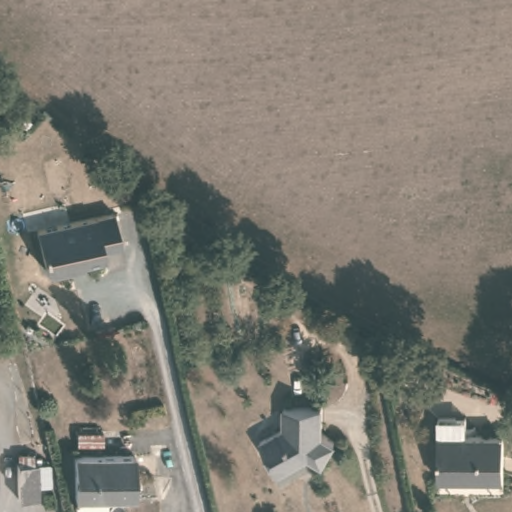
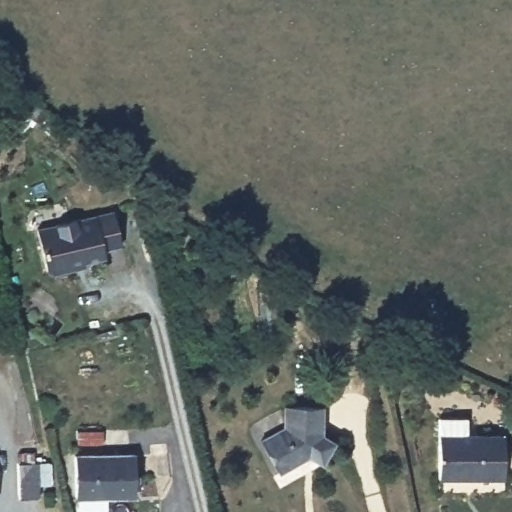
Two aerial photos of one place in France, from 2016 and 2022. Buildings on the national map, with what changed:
unchanged [(34,233),(111,215),(119,249),(100,253),(102,261),(68,269),(69,274),(50,278),(44,274),(34,233)]
unchanged [(319,444),(328,451),(317,470),(305,461),(276,480),(254,446),(279,432),(280,408),(319,407),(319,444)]
unchanged [(467,443),(500,442),(501,486),(434,487),(434,444),(439,444),(439,426),(467,426),(467,443)]
unchanged [(131,500),(73,501),(73,459),(131,458),(131,500)]
unchanged [(36,505),(15,505),(15,467),(36,467),(36,505)]

